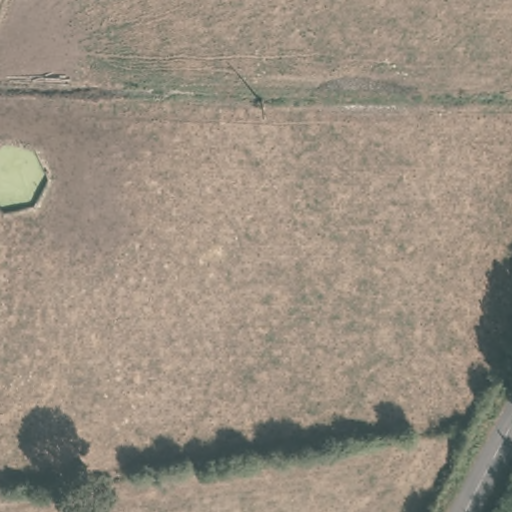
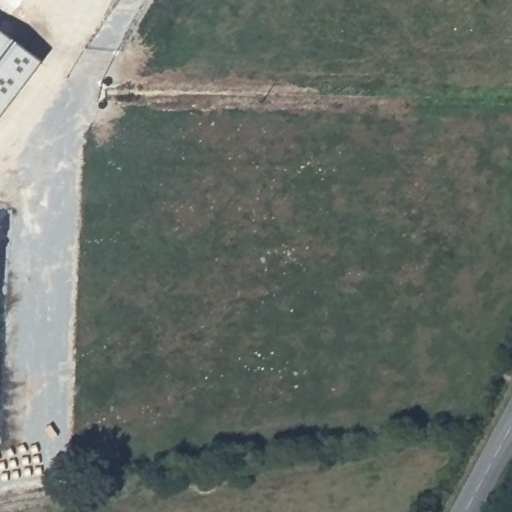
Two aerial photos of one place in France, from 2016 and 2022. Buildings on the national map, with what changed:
new [(42,62),(0,118),(0,31),(42,62)]

